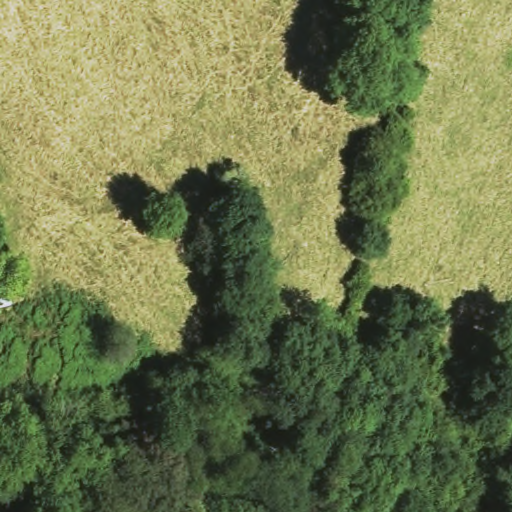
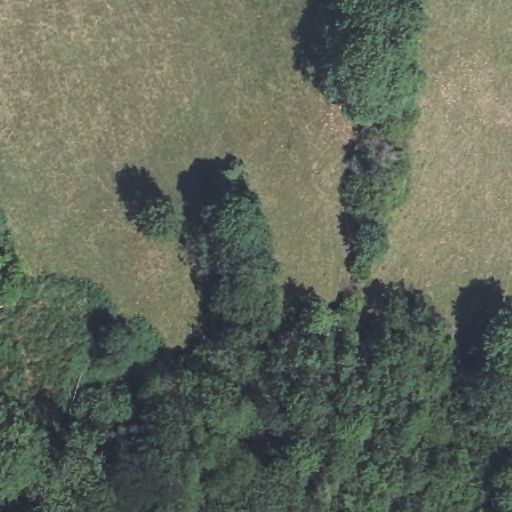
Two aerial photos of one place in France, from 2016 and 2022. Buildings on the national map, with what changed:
unchanged [(0,308),(0,282),(12,281),(16,304),(0,308)]

